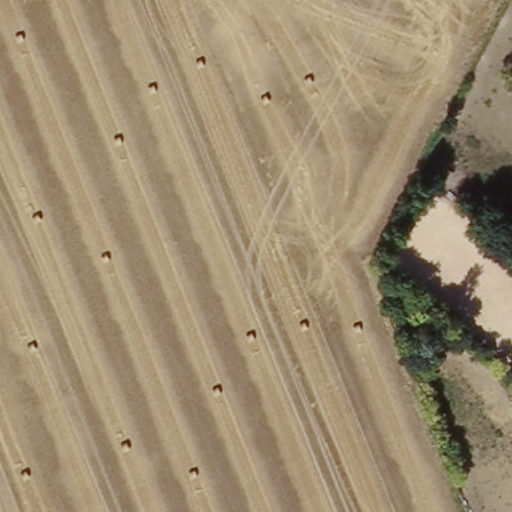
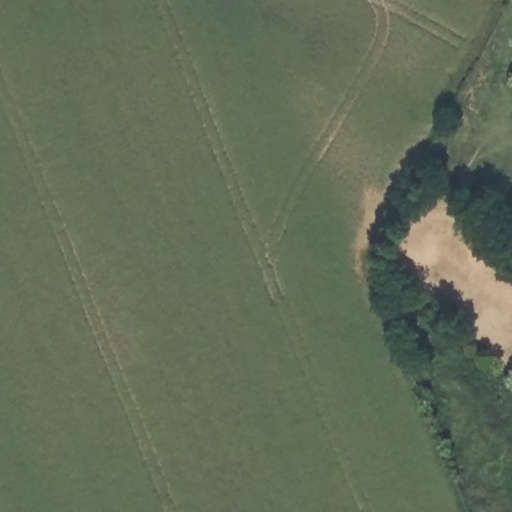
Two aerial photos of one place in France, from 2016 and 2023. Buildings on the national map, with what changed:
[]

